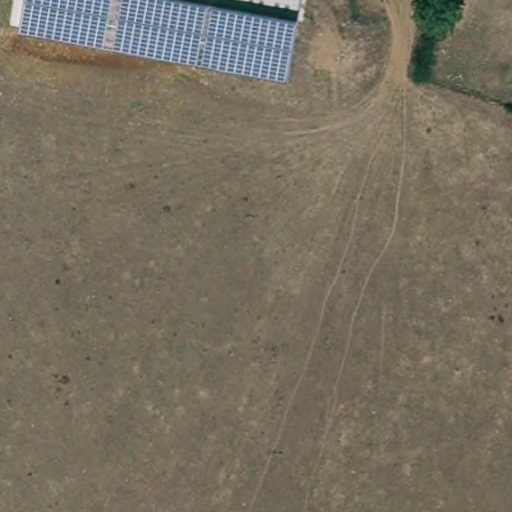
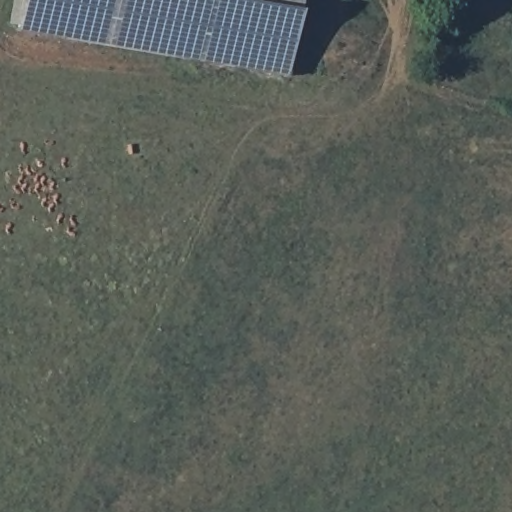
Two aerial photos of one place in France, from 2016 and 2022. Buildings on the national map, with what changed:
unchanged [(287,76),(21,30),(25,0),(299,0),(287,76)]

